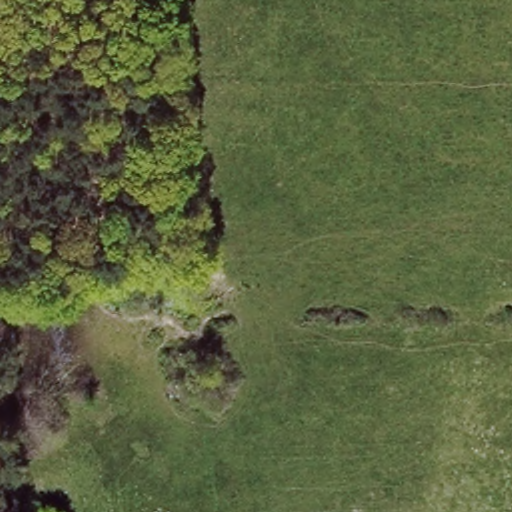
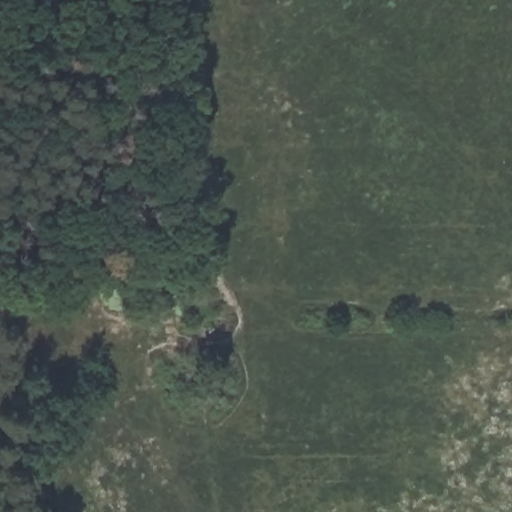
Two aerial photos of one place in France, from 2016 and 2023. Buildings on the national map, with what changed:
unchanged [(166,398),(163,371),(192,369),(195,394),(166,398)]

